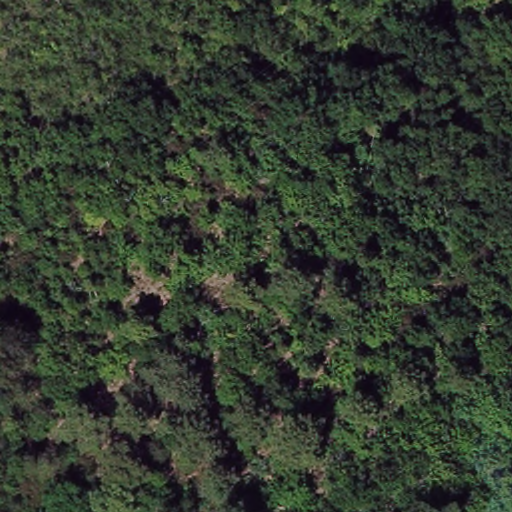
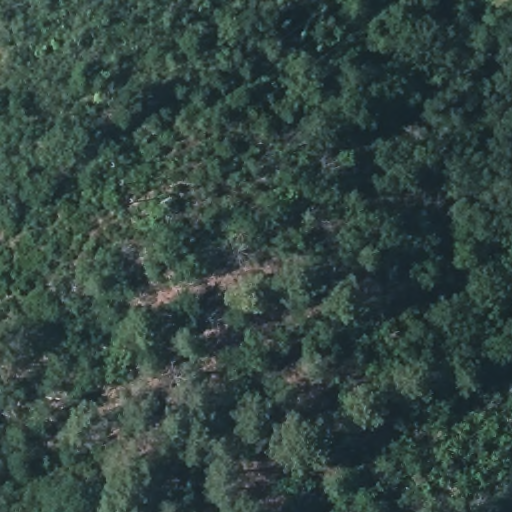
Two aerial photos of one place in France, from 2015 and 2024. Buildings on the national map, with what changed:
unchanged [(504,512),(481,512),(479,509),(496,497),(506,510),(504,512)]

